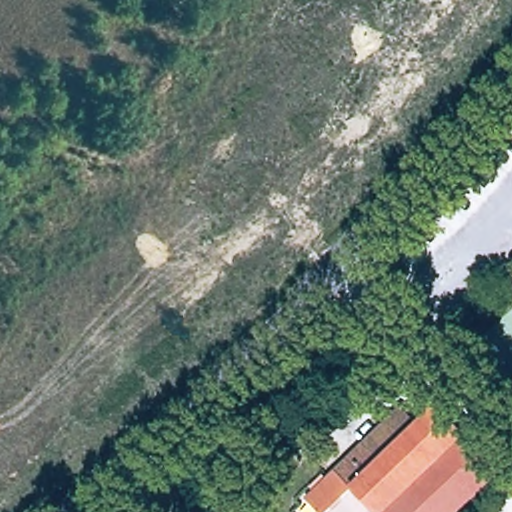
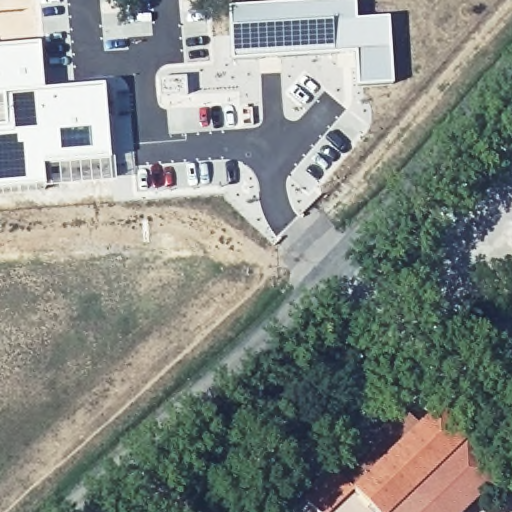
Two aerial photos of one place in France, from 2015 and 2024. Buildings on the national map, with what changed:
new [(357,86),(355,54),(232,60),(228,6),(345,0),(354,0),(355,20),(387,17),(392,85),(357,86)]
new [(40,44),(44,90),(103,85),(115,185),(44,191),(0,190),(0,46),(40,44)]
unchanged [(403,402),(422,421),(439,405),(502,470),(459,512),(323,512),(307,495),(403,402)]

